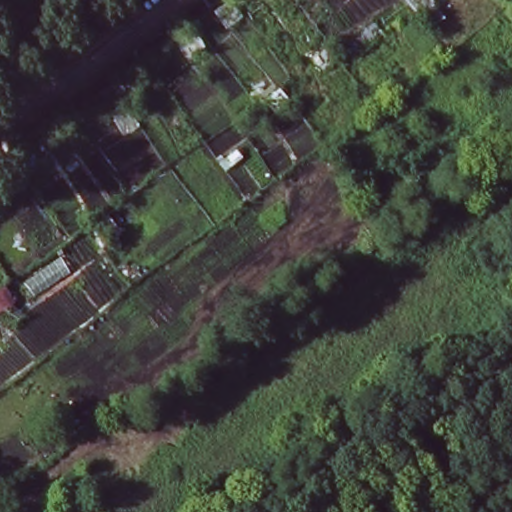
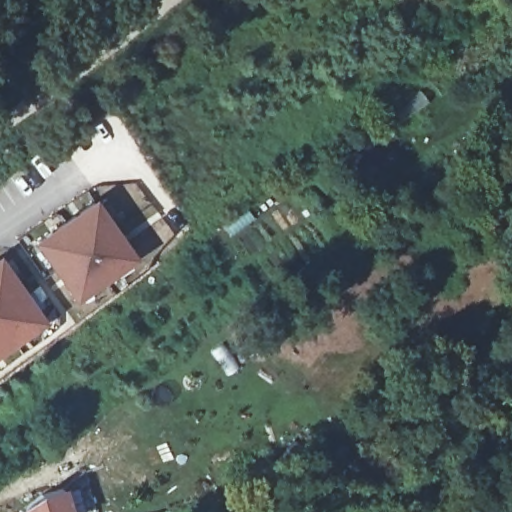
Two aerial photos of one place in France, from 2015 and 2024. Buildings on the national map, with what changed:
new [(96,199),(138,258),(76,302),(32,241),(96,199)]
new [(0,354),(0,257),(47,321),(0,354)]
new [(39,492),(65,486),(72,512),(16,512),(16,511),(39,492)]

